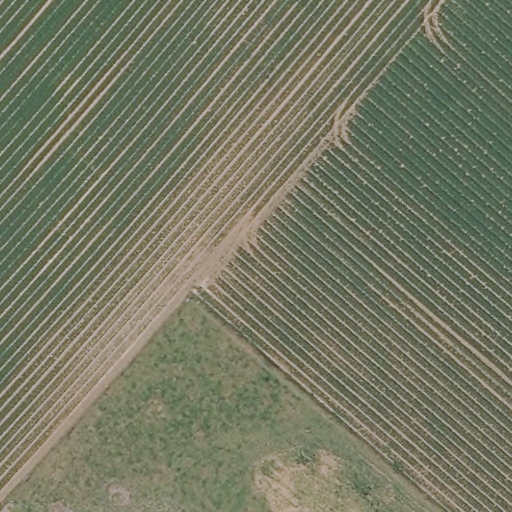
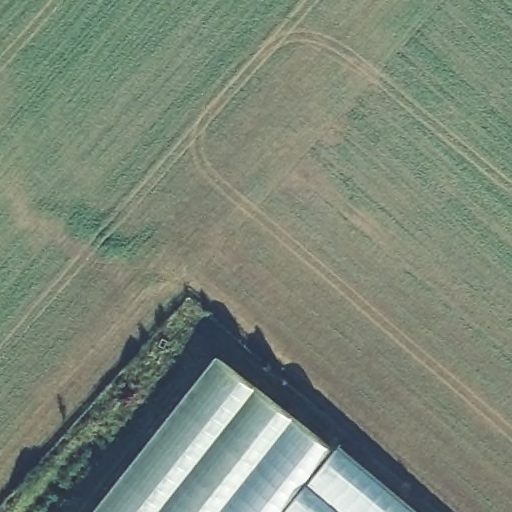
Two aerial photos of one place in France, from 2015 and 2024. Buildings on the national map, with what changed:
new [(217,357),(333,448),(284,512),(95,512),(217,357)]
new [(333,448),(339,441),(422,512),(284,512),(333,448)]

